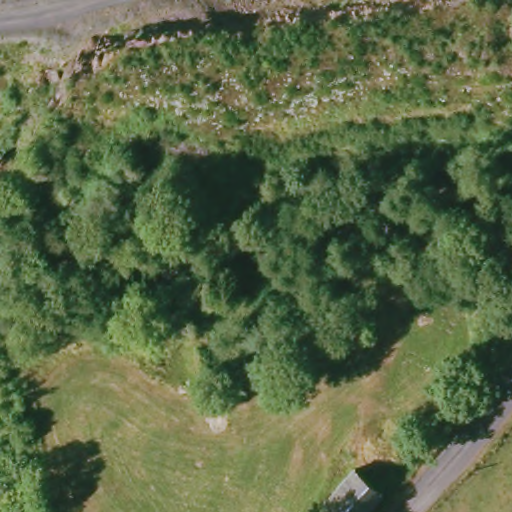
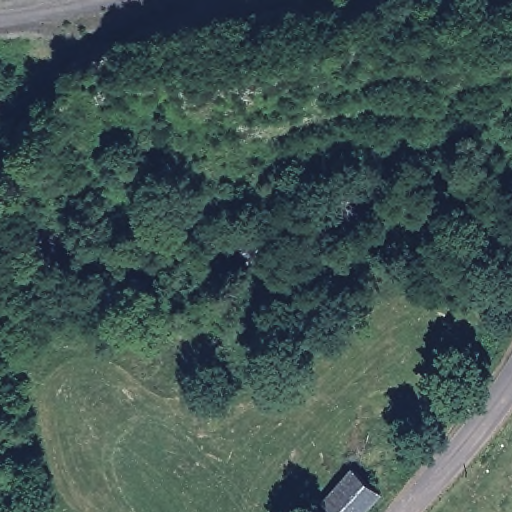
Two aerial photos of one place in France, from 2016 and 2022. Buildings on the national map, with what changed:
unchanged [(350,486),(375,507),(371,512),(329,512),(350,486)]

